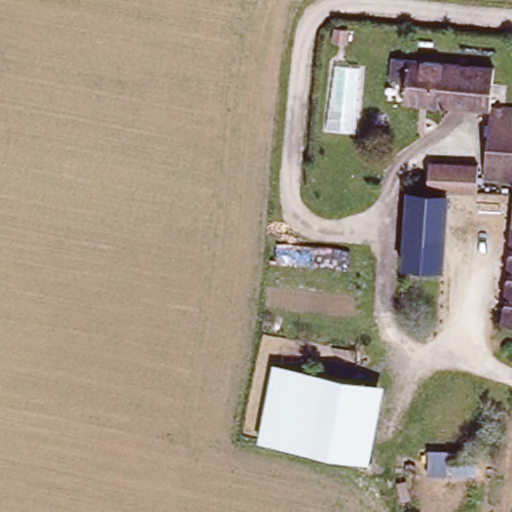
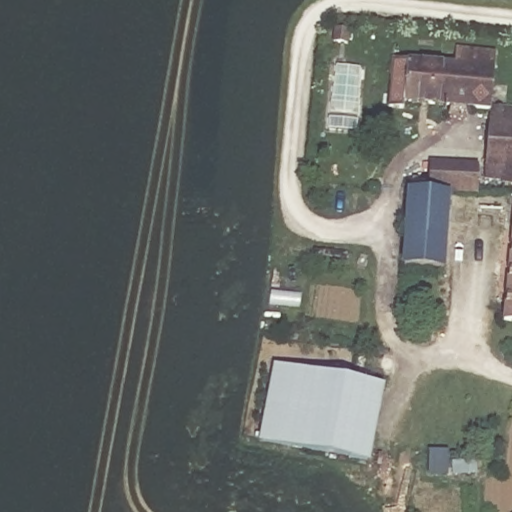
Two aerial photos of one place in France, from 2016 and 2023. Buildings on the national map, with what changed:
unchanged [(481,108),(481,111),(392,106),(392,89),(377,89),(379,60),(484,65),(481,108)]
unchanged [(508,175),(479,173),(480,123),(481,111),(481,108),(512,111),(512,158),(510,158),(508,175)]
unchanged [(427,160),(479,164),(479,173),(476,189),(427,185),(427,160)]
unchanged [(442,267),(409,269),(404,190),(440,192),(442,267)]
unchanged [(512,250),(512,325),(502,323),(512,250)]
unchanged [(389,385),(371,466),(257,448),(275,362),(389,385)]

